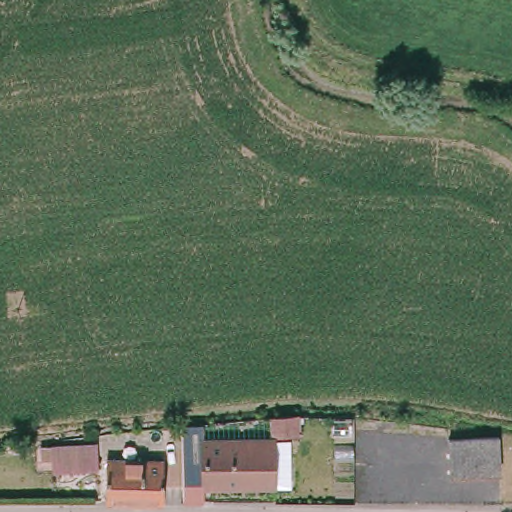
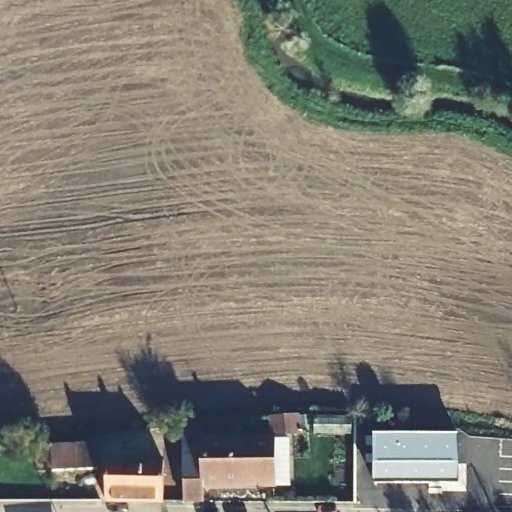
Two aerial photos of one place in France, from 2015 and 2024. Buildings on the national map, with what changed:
demolished [(376,422),(376,429),(355,428),(355,422),(376,422)]
unchanged [(204,427),(205,443),(273,441),(274,485),(206,487),(205,481),(184,482),(183,428),(204,427)]
new [(460,483),(374,482),(374,435),(459,435),(460,483)]
demolished [(497,437),(500,470),(451,472),(449,440),(497,437)]
unchanged [(94,447),(98,471),(53,476),(49,452),(94,447)]
unchanged [(164,461),(164,502),(106,502),(107,461),(164,461)]

